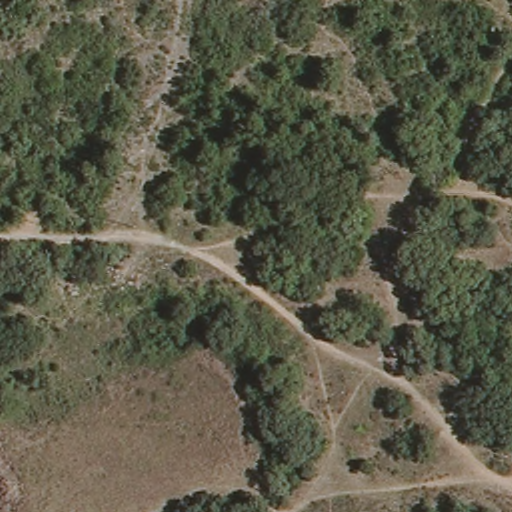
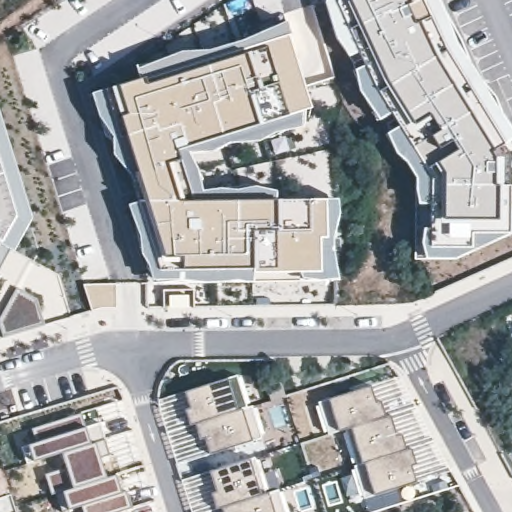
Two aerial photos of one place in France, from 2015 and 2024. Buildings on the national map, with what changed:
new [(470,231),(470,245),(431,245),(432,177),(337,3),(337,0),(422,0),(502,145),(490,153),(496,186),(509,186),(508,232),(470,231)]
new [(325,237),(319,238),(319,270),(251,268),(183,269),(182,258),(165,257),(121,118),(128,115),(119,86),(145,79),(148,85),(245,54),(244,49),(288,35),(311,109),(256,124),(176,150),(179,160),(167,164),(179,203),(275,201),(325,201),(325,237)]
new [(26,218),(0,265),(0,135),(26,218)]
new [(38,299),(45,324),(3,337),(0,328),(0,318),(17,288),(38,299)]
new [(239,374),(248,406),(190,424),(182,392),(239,374)]
new [(329,399),(370,386),(375,401),(380,399),(385,415),(390,414),(397,434),(401,432),(407,449),(412,448),(417,464),(412,466),(416,481),(374,494),(364,497),(354,465),(360,463),(350,428),(339,431),(329,434),(318,403),(329,399)]
new [(248,406),(252,404),(263,439),(250,444),(207,456),(190,424),(248,406)]
new [(60,452),(33,460),(29,445),(37,443),(33,430),(80,414),(85,427),(100,423),(104,437),(90,441),(60,452)]
new [(80,506),(67,509),(61,489),(51,492),(46,474),(65,467),(60,452),(92,441),(95,439),(107,474),(116,473),(130,508),(120,512),(82,512),(80,506)]
new [(265,493),(278,489),(285,512),(222,512),(220,507),(216,508),(212,493),(216,491),(210,472),(249,459),(254,458),(265,493)]

